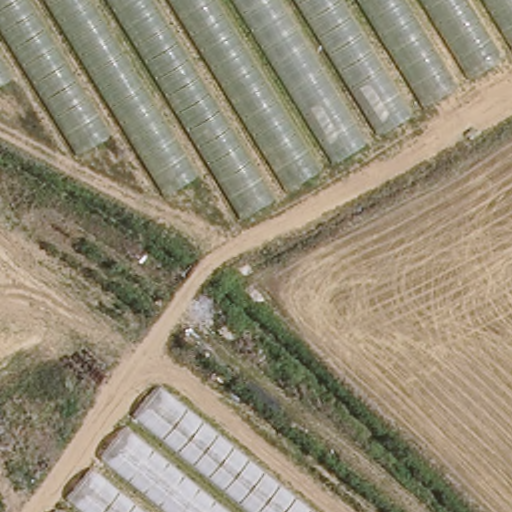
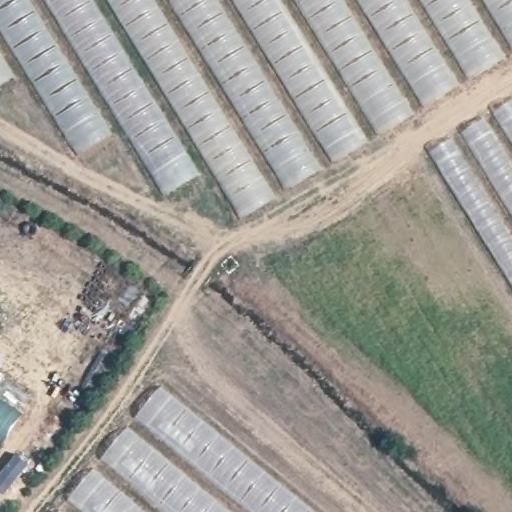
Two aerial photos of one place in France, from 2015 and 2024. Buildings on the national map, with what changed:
unchanged [(213,171),(169,199),(125,126),(78,155),(26,68),(0,84),(0,0),(512,0),(512,53),(244,217),(213,171)]
new [(426,156),(512,102),(512,298),(426,156)]
unchanged [(160,390),(309,512),(59,512),(160,390)]
new [(0,445),(0,401),(20,414),(0,445)]

